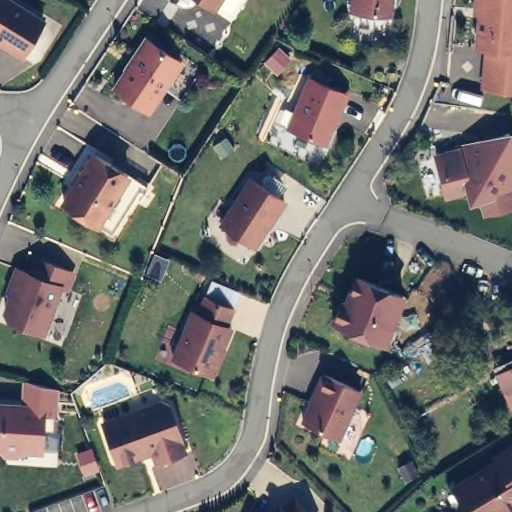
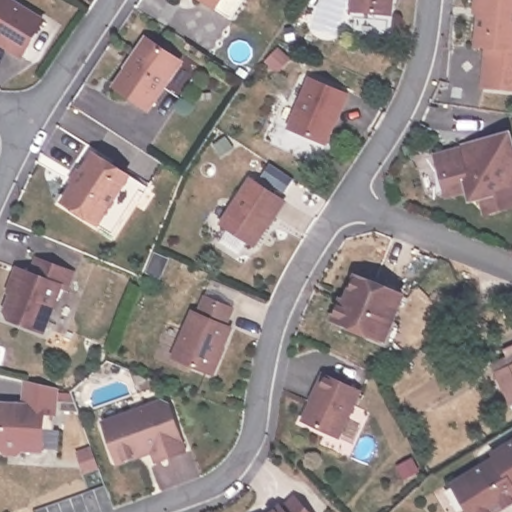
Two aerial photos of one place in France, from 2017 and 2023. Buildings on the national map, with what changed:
unchanged [(22,59),(0,46),(0,0),(13,0),(44,19),(22,59)]
unchanged [(202,0),(220,0),(215,9),(202,0)]
unchanged [(392,0),(391,15),(351,11),(352,0),(392,0)]
unchanged [(480,49),(471,49),(475,15),(469,14),(470,0),(512,0),(512,92),(476,90),(480,49)]
unchanged [(147,40),(181,62),(148,109),(115,87),(147,40)]
unchanged [(309,78),(347,94),(326,144),(288,129),(309,78)]
unchanged [(512,136),(512,210),(481,218),(475,203),(469,205),(466,195),(444,200),(442,194),(426,198),(417,169),(435,164),(430,151),(511,131),(512,136)]
unchanged [(87,219),(53,198),(84,149),(117,171),(132,181),(102,229),(87,219)]
unchanged [(285,201),(255,247),(220,224),(250,179),(285,201)]
unchanged [(5,313),(21,270),(31,274),(37,259),(72,272),(67,288),(61,286),(44,332),(8,319),(5,313)]
unchanged [(333,321),(342,300),(346,302),(356,277),(402,295),(384,342),(333,321)]
unchanged [(174,358),(192,312),(198,315),(205,297),(233,309),(226,326),(231,328),(212,374),(174,358)]
unchanged [(504,377),(512,373),(512,395),(504,377)]
unchanged [(324,375),(361,392),(339,438),(302,421),(324,375)]
unchanged [(43,429),(42,451),(24,450),(18,455),(6,454),(1,448),(0,448),(0,404),(25,406),(26,381),(56,389),(54,430),(43,429)]
unchanged [(104,424),(163,402),(168,404),(186,452),(156,463),(151,447),(139,452),(137,457),(122,462),(117,460),(104,424)]
unchanged [(500,512),(472,512),(457,486),(499,460),(497,456),(512,447),(512,505),(500,512)]
unchanged [(280,507),(282,510),(295,498),(308,512),(275,512),(280,507)]

